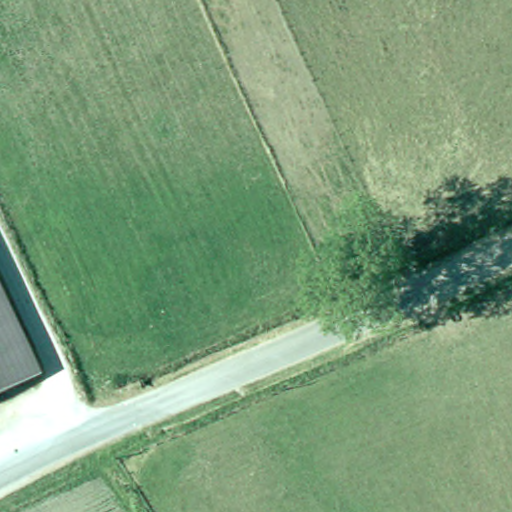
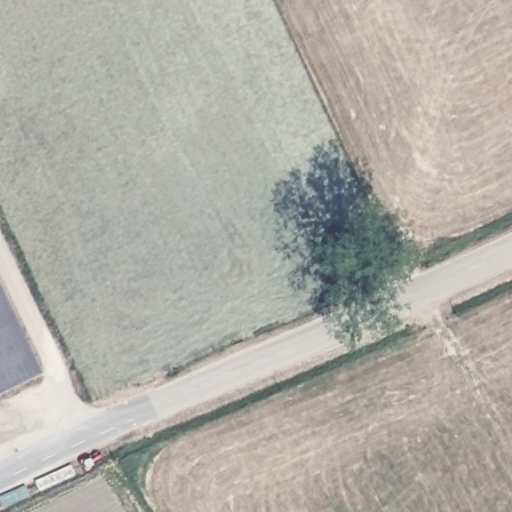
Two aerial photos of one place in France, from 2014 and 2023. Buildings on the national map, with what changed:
unchanged [(35,370),(0,386),(0,293),(35,370)]

